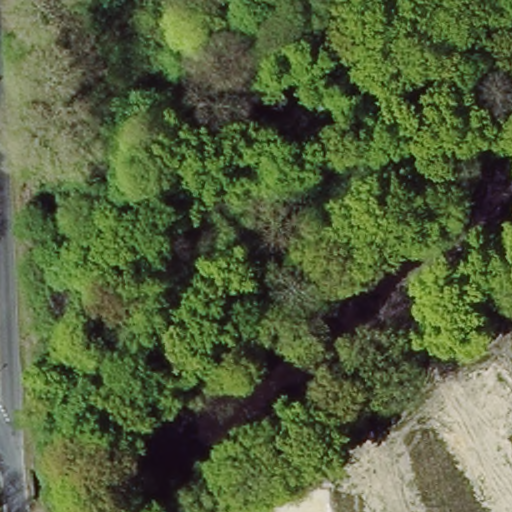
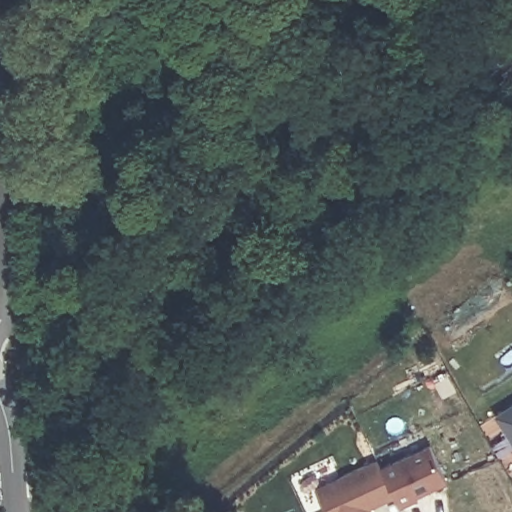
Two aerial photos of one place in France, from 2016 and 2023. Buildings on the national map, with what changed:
new [(512,400),(512,439),(495,411),(512,400)]
new [(417,496),(417,499),(400,507),(395,496),(370,508),(372,512),(326,512),(315,486),(376,457),(381,465),(431,441),(450,480),(417,496)]

